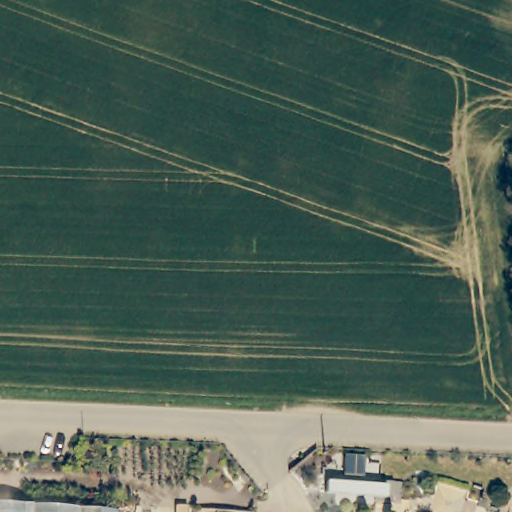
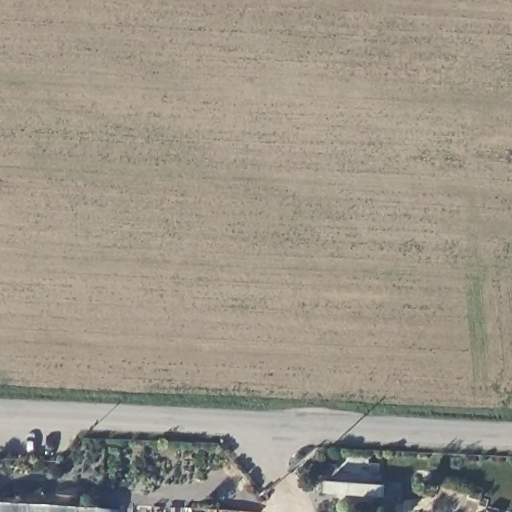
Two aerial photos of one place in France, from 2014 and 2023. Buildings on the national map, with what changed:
unchanged [(115,510),(115,512),(0,512),(0,504),(115,510)]

